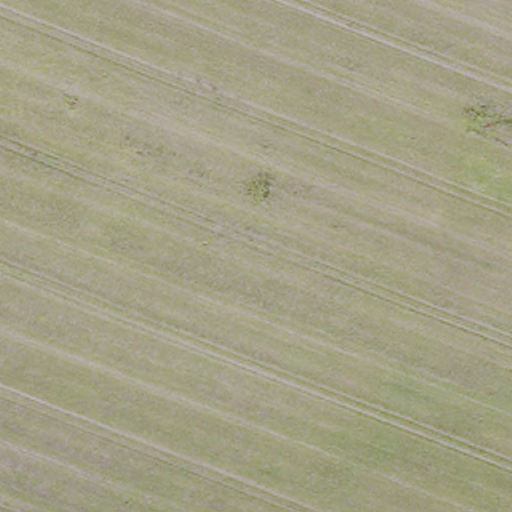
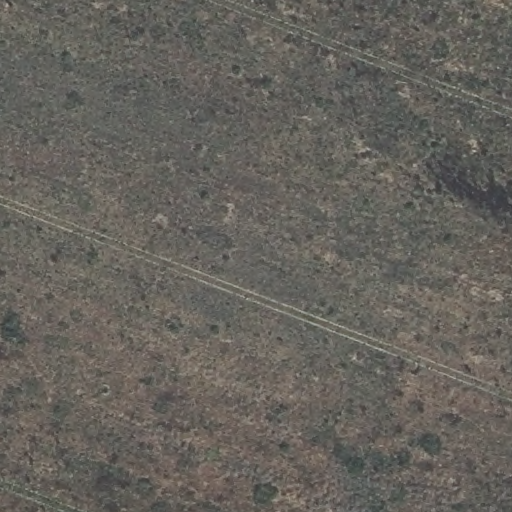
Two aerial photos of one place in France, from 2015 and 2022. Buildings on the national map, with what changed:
[]

